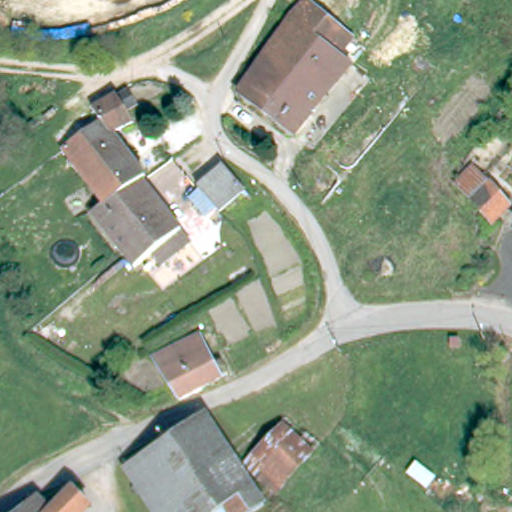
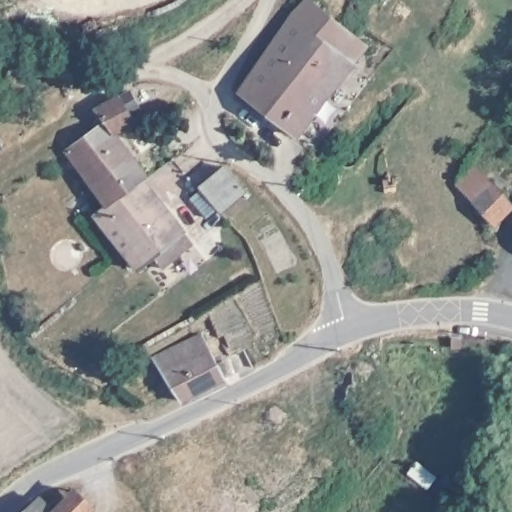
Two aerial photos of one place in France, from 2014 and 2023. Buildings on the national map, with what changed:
unchanged [(332,49),(346,59),(307,112),(310,114),(295,135),(236,93),(288,19),(306,2),(345,29),(332,49)]
unchanged [(142,176),(138,179),(104,205),(62,150),(100,121),(93,112),(116,95),(125,88),(135,102),(126,109),(135,121),(113,138),(142,176)]
unchanged [(1,145),(0,146),(0,144),(1,145)]
unchanged [(232,194),(225,200),(211,210),(191,184),(217,164),(237,190),(232,194)]
unchanged [(485,212),(465,195),(466,194),(460,188),(471,175),(478,180),(497,197),(485,212)]
unchanged [(150,255),(133,267),(120,250),(91,215),(104,205),(138,179),(180,233),(190,245),(160,268),(150,255)]
unchanged [(227,372),(222,375),(197,389),(199,392),(177,401),(151,358),(196,332),(216,365),(221,362),(227,372)]
demolished [(265,507),(258,512),(229,512),(226,508),(221,512),(154,512),(124,468),(201,414),(265,507)]
demolished [(286,484),(267,468),(295,435),(315,452),(286,484)]
unchanged [(41,493),(54,505),(76,483),(93,500),(82,512),(22,512),(41,493)]

